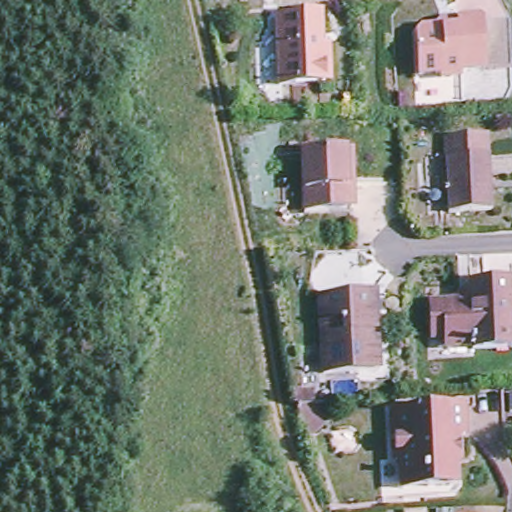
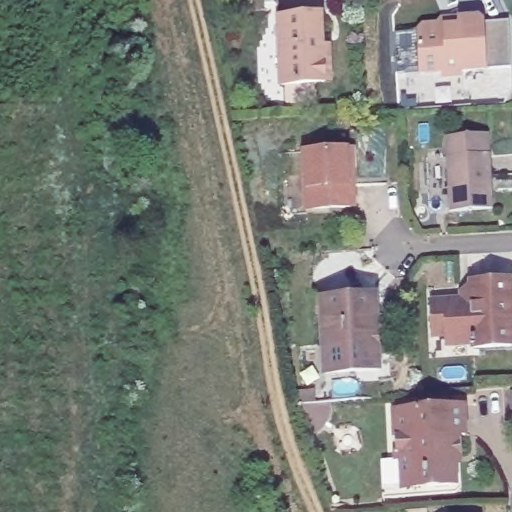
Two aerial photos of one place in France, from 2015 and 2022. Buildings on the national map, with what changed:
unchanged [(319,8),(322,40),(329,40),(330,75),(279,78),(275,11),(319,8)]
unchanged [(443,20),(442,12),(477,10),(482,15),(482,71),(442,73),(442,65),(418,67),(418,22),(443,20)]
unchanged [(489,150),(488,205),(447,208),(447,152),(489,150)]
unchanged [(352,152),(352,167),(346,168),(347,183),(351,183),(350,206),(305,207),(304,153),(352,152)]
unchanged [(474,284),(512,281),(512,345),(477,347),(475,343),(449,345),(449,335),(435,336),(434,301),(474,299),(474,284)]
unchanged [(372,294),(375,371),(322,371),(319,296),(372,294)]
unchanged [(297,410),(311,396),(324,396),(317,413),(302,425),(297,410)]
unchanged [(512,398),(512,413),(504,413),(505,398),(512,398)]
unchanged [(378,493),(378,457),(392,456),(392,404),(461,402),(464,430),(457,430),(459,453),(452,453),(450,483),(420,484),(420,479),(398,480),(399,492),(378,493)]

